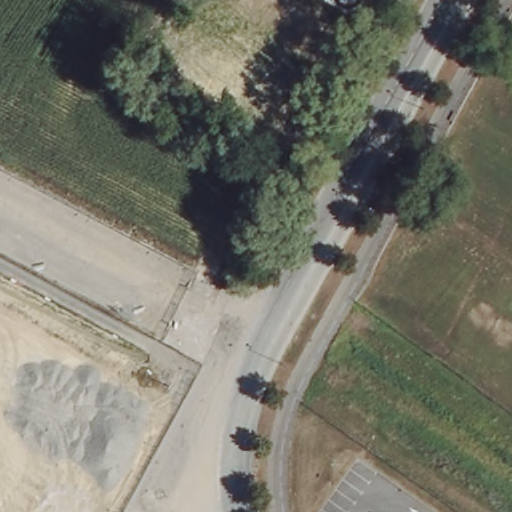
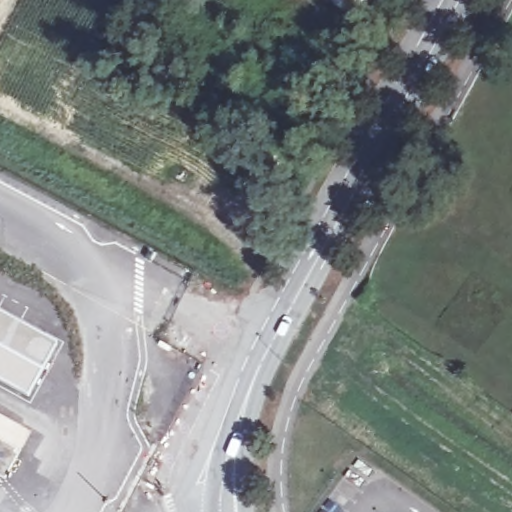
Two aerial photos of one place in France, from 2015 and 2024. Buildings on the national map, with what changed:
new [(346,7),(336,2),(335,0),(359,0),(358,2),(346,7)]
new [(28,400),(0,384),(0,310),(59,342),(28,400)]
new [(18,452),(0,442),(0,413),(31,431),(18,452)]

